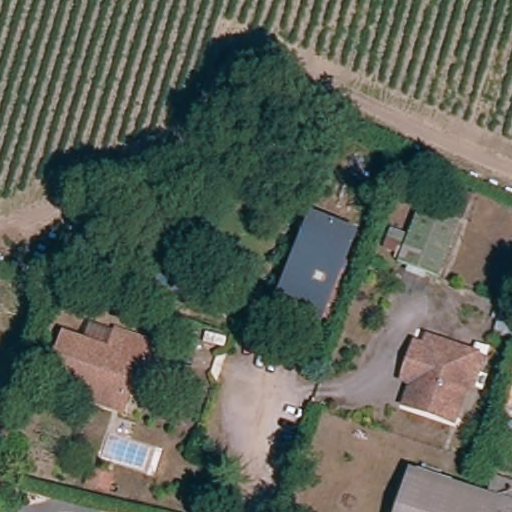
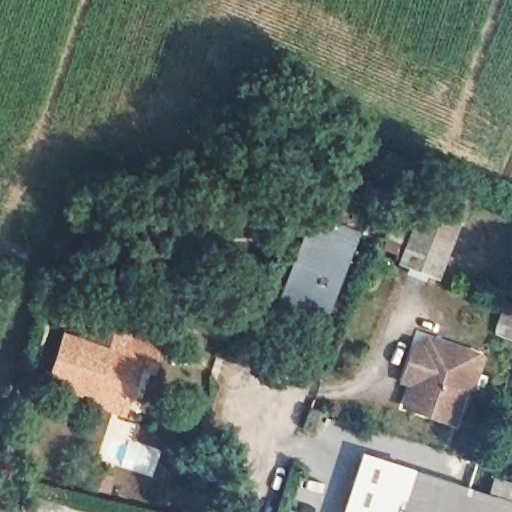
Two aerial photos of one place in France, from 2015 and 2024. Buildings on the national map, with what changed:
unchanged [(456,228),(436,285),(399,270),(419,214),(456,228)]
unchanged [(105,228),(151,216),(159,247),(154,260),(140,255),(132,275),(88,257),(105,228)]
unchanged [(324,318),(284,303),(313,217),(354,233),(324,318)]
unchanged [(229,301),(223,321),(208,315),(165,298),(171,281),(194,289),(229,301)]
unchanged [(78,402),(81,389),(49,380),(61,339),(76,343),(82,323),(111,332),(160,346),(152,372),(136,367),(128,396),(123,414),(78,402)]
unchanged [(463,391),(469,394),(458,429),(406,415),(416,386),(402,382),(413,348),(426,354),(427,352),(430,342),(458,352),(473,357),(463,391)]
new [(360,453),(413,470),(415,478),(403,512),(341,512),(360,453)]
unchanged [(472,512),(403,512),(415,478),(478,497),(472,512)]
unchanged [(502,482),(512,486),(512,512),(472,512),(478,497),(497,503),(502,482)]

